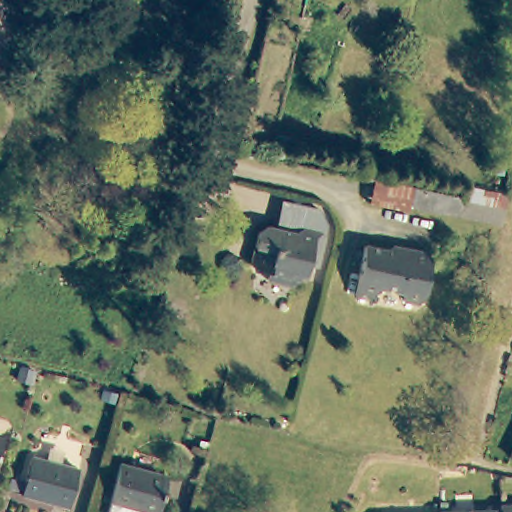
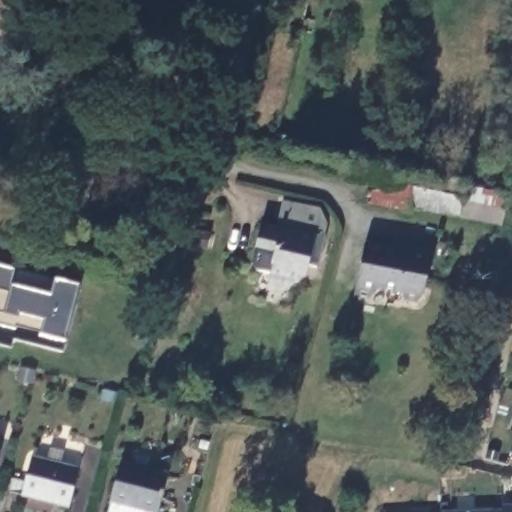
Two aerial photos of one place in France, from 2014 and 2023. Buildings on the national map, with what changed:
unchanged [(409,205),(407,209),(371,201),(374,180),(499,201),(492,219),(409,205)]
unchanged [(323,224),(315,266),(308,264),(305,277),(299,275),(299,280),(291,285),(269,280),(270,273),(257,270),(252,262),(258,232),(267,227),(275,228),(282,202),(304,206),(318,209),(323,224)]
unchanged [(366,247),(394,250),(396,244),(431,250),(421,299),(408,297),(404,293),(386,289),(377,298),(357,294),(366,247)]
new [(69,344),(44,337),(44,335),(20,328),(19,331),(0,325),(0,265),(84,287),(69,344)]
unchanged [(0,443),(0,436),(1,436),(0,443)]
unchanged [(23,493),(33,455),(79,468),(68,506),(23,493)]
unchanged [(109,495),(120,458),(169,471),(159,509),(154,507),(153,512),(112,512),(107,506),(109,495)]
unchanged [(500,505),(512,504),(512,512),(459,512),(499,511),(500,505)]

